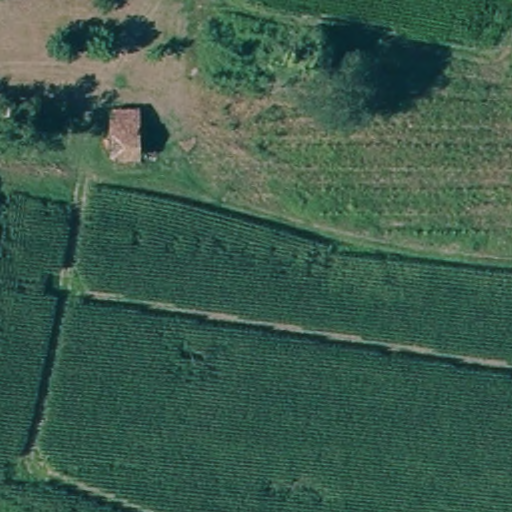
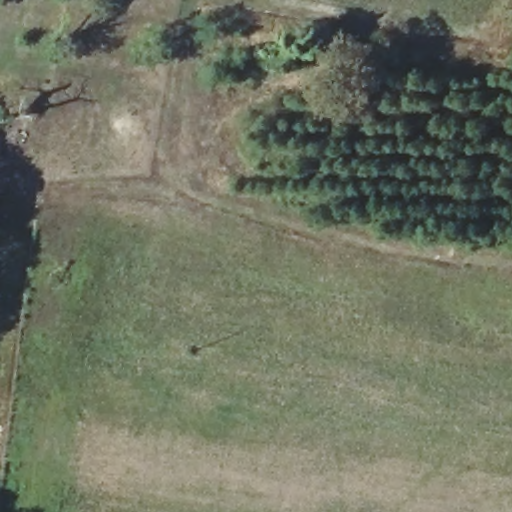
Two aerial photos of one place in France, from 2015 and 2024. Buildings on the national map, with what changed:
demolished [(137,110),(135,159),(109,156),(112,109),(137,110)]

